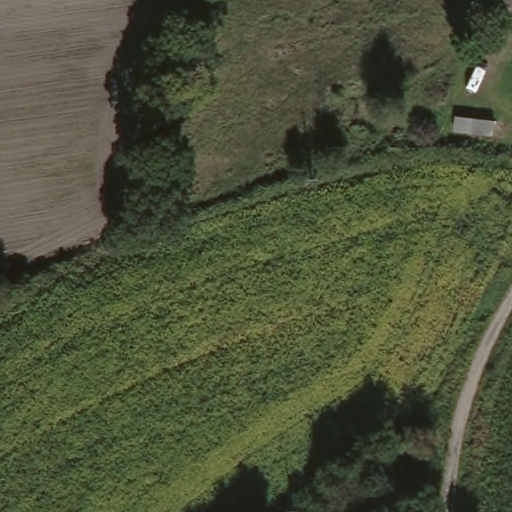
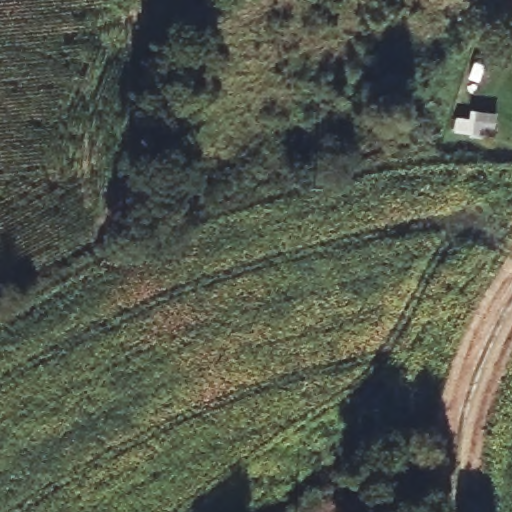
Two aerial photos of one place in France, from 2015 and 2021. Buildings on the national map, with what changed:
unchanged [(496,122),(495,124),(508,125),(506,138),(493,136),(454,131),(457,119),(469,120),(469,119),(496,122)]

